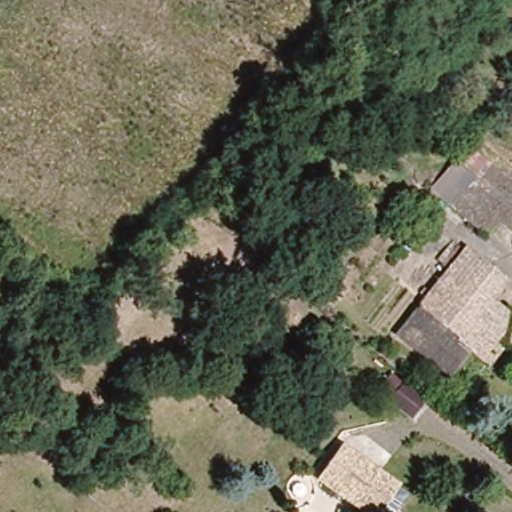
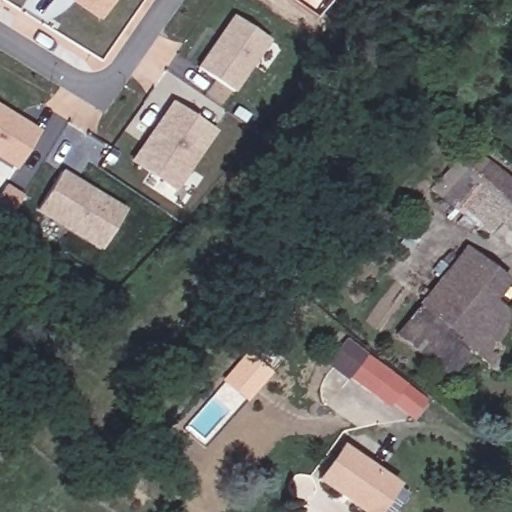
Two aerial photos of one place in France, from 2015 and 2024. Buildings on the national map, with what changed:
new [(75,0),(120,0),(105,21),(75,0)]
new [(237,93),(202,70),(239,17),(273,40),(237,93)]
new [(0,157),(0,106),(44,133),(21,170),(0,157)]
new [(176,189),(137,163),(176,106),(215,132),(176,189)]
unchanged [(500,227),(491,237),(431,185),(441,174),(467,142),(512,180),(512,237),(500,227)]
new [(105,250),(43,211),(67,173),(128,212),(105,250)]
new [(0,214),(0,204),(10,187),(28,197),(12,221),(0,214)]
unchanged [(432,316),(469,344),(446,374),(390,332),(458,243),(478,258),(432,316)]
unchanged [(469,344),(432,316),(478,258),(501,276),(490,291),(499,299),(496,304),(504,311),(489,333),(501,342),(488,359),(469,344)]
new [(424,399),(409,418),(390,403),(384,411),(326,365),(346,339),(424,399)]
new [(264,345),(280,359),(243,401),(219,380),(246,350),(259,350),(264,345)]
unchanged [(370,512),(368,512),(320,474),(342,446),(391,483),(370,512)]

